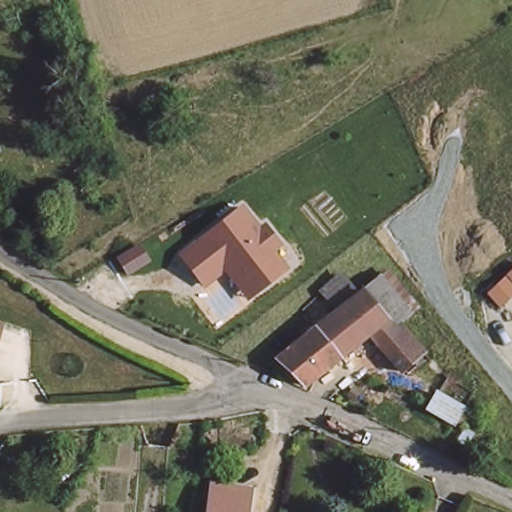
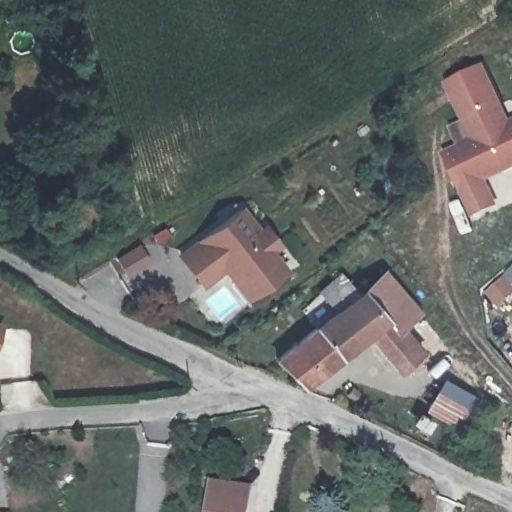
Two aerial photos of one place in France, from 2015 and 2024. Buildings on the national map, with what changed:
new [(442,155),(458,147),(449,130),(463,123),(445,86),(485,67),(511,122),(512,122),(512,171),(487,184),(499,207),(473,219),(442,155)]
unchanged [(260,227),(264,222),(281,245),(274,250),(289,270),(247,300),(223,272),(203,287),(178,254),(242,203),(260,227)]
unchanged [(486,293),(512,269),(512,294),(497,307),(486,293)]
unchanged [(344,272),(353,283),(330,302),(320,290),(344,272)]
unchanged [(393,342),(362,292),(384,278),(415,327),(393,342)]
unchanged [(362,292),(393,342),(412,371),(389,384),(359,341),(294,375),(270,349),(362,292)]
unchanged [(7,324),(0,342),(0,322),(7,324)]
unchanged [(418,415),(440,402),(454,426),(432,438),(418,415)]
unchanged [(253,478),(249,512),(212,512),(216,474),(253,478)]

